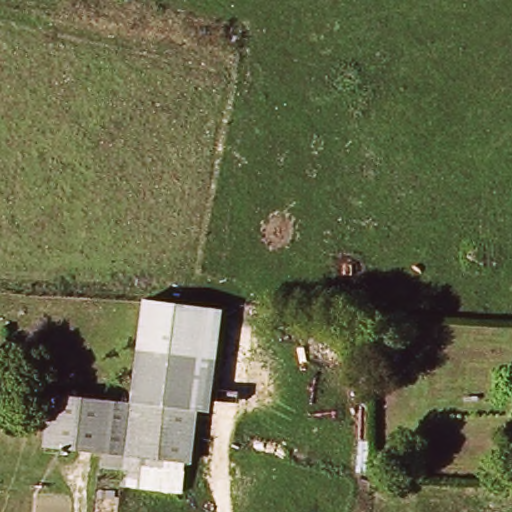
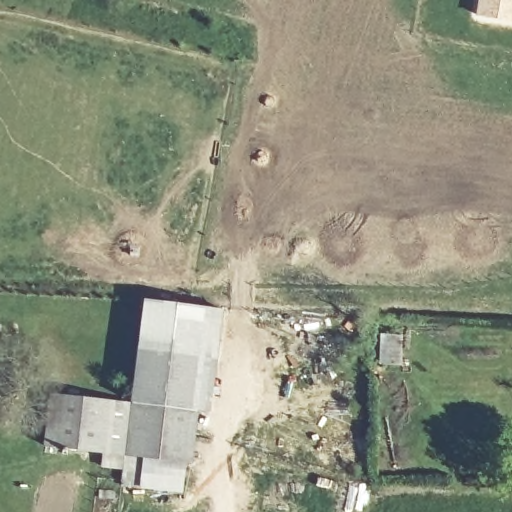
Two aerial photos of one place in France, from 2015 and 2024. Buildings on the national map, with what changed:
new [(512,0),(512,24),(475,17),(478,0),(512,0)]
unchanged [(147,303),(228,313),(215,415),(200,414),(195,458),(128,449),(135,397),(147,303)]
unchanged [(50,440),(56,389),(135,397),(128,449),(50,440)]
unchanged [(185,494),(124,487),(125,478),(128,449),(195,458),(194,464),(189,464),(187,477),(185,494)]

